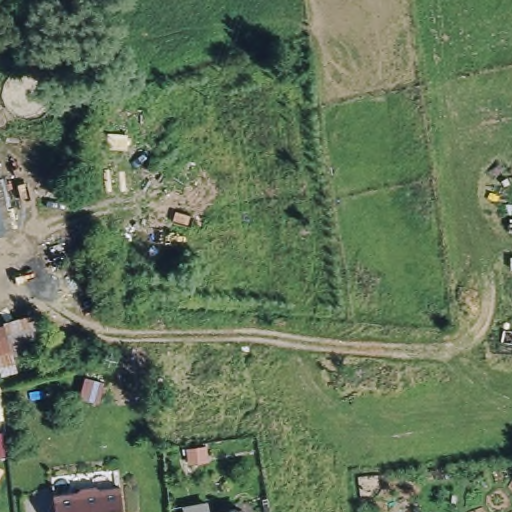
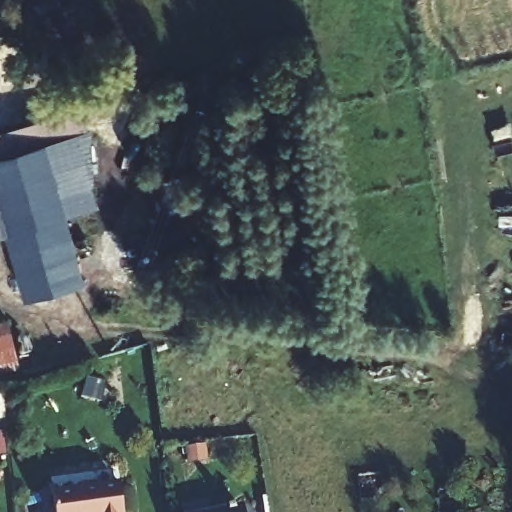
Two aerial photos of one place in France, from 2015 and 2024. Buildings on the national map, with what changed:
new [(93,126),(100,206),(67,215),(87,282),(25,299),(5,231),(0,212),(0,130),(82,108),(87,127),(93,126)]
unchanged [(0,232),(0,212),(5,231),(0,232)]
unchanged [(16,374),(0,378),(0,327),(5,326),(16,374)]
unchanged [(77,495),(80,491),(95,490),(99,492),(120,490),(123,512),(55,512),(53,498),(77,495)]

